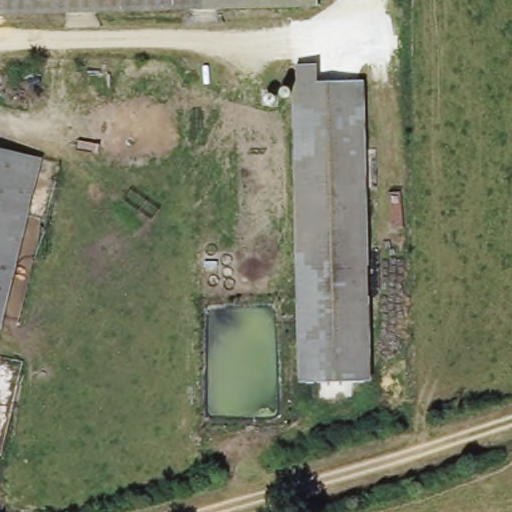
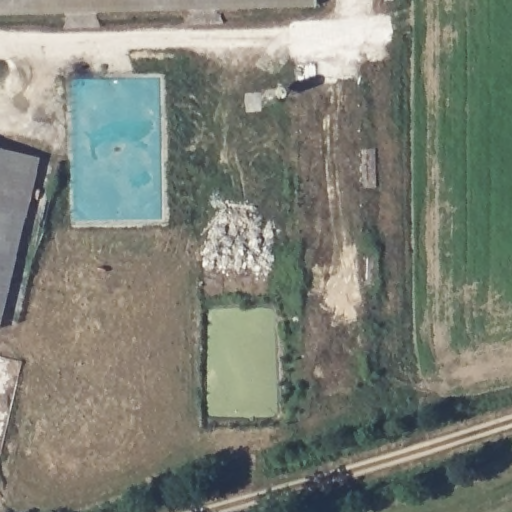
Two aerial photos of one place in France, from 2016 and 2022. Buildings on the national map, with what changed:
unchanged [(228,10),(189,11),(104,13),(69,14),(0,15),(0,0),(319,0),(319,9),(228,10)]
demolished [(363,251),(364,293),(367,380),(304,382),(296,65),(318,64),(319,81),(359,81),(361,153),(362,189),(363,251)]
unchanged [(4,326),(0,325),(0,144),(44,155),(4,326)]

